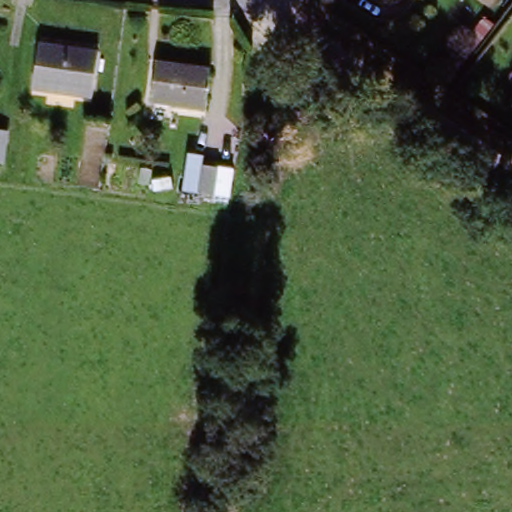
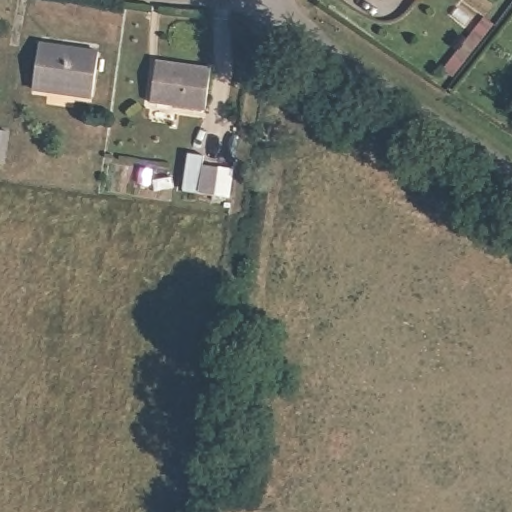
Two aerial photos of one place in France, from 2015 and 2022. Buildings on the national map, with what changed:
unchanged [(104,52),(97,102),(28,93),(35,43),(58,47),(58,51),(83,55),(85,49),(104,52)]
unchanged [(212,69),(205,115),(149,107),(155,61),(212,69)]
unchanged [(0,163),(0,128),(12,130),(7,164),(0,163)]
unchanged [(215,195),(183,191),(189,155),(207,158),(207,165),(219,168),(215,195)]

